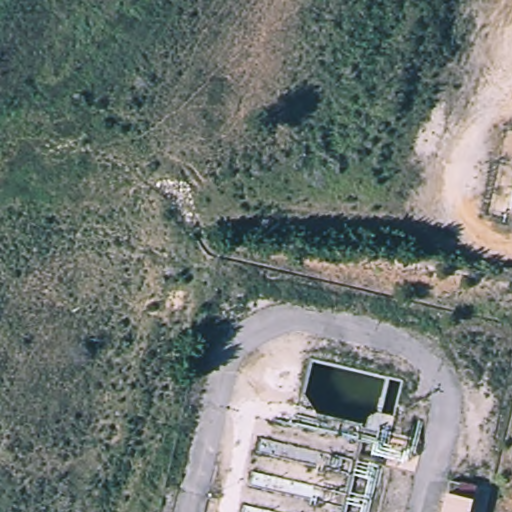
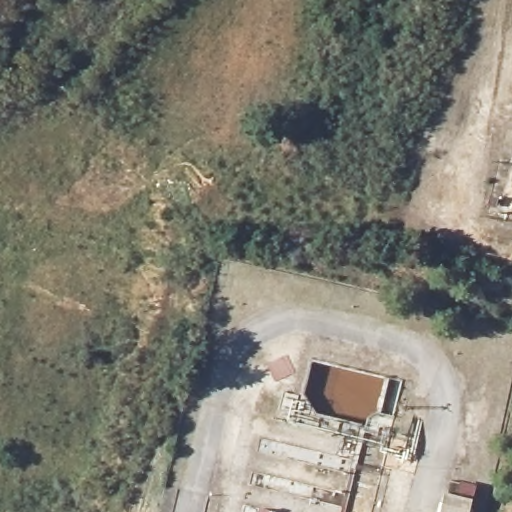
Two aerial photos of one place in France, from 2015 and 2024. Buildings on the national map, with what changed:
unchanged [(443,512),(448,493),(478,498),(474,512),(443,512)]

